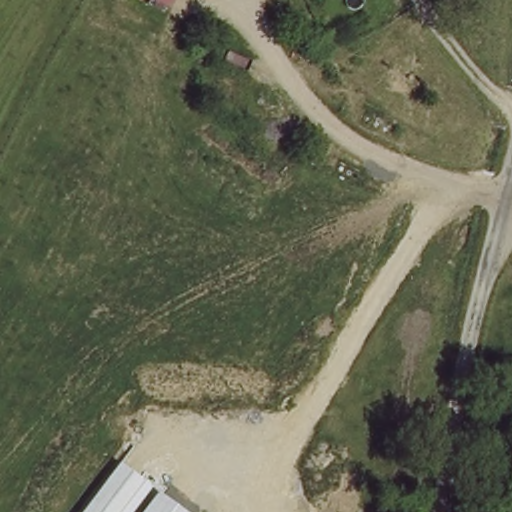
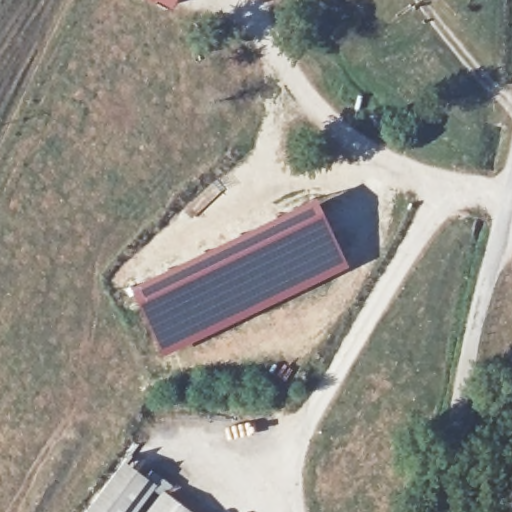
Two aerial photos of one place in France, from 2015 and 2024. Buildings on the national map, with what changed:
unchanged [(170,4),(162,0),(172,0),(170,4)]
new [(316,198),(348,265),(160,356),(127,287),(316,198)]
unchanged [(191,512),(84,512),(122,461),(191,512)]

